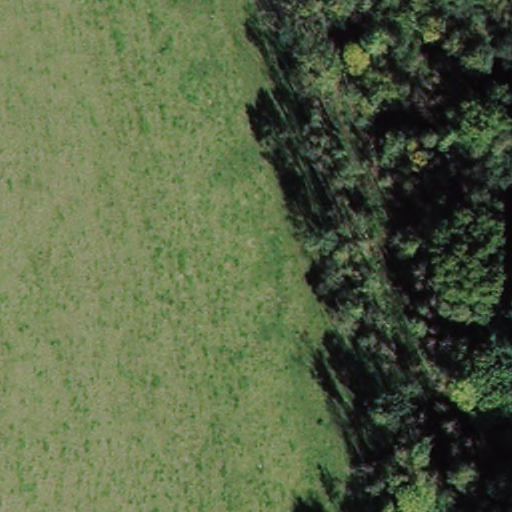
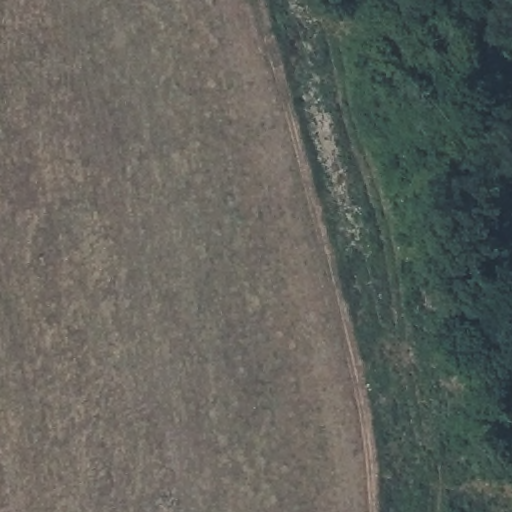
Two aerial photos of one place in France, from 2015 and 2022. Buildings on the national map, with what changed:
[]

